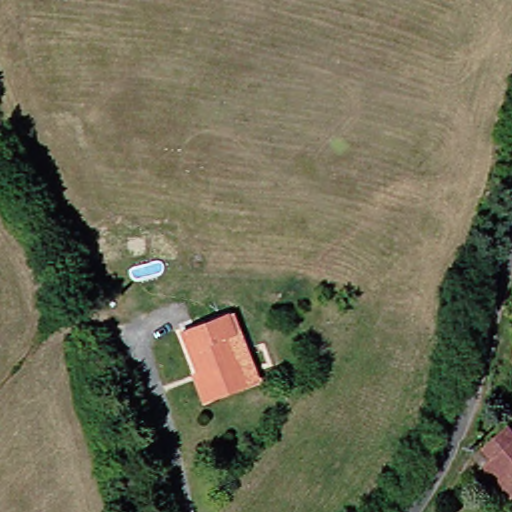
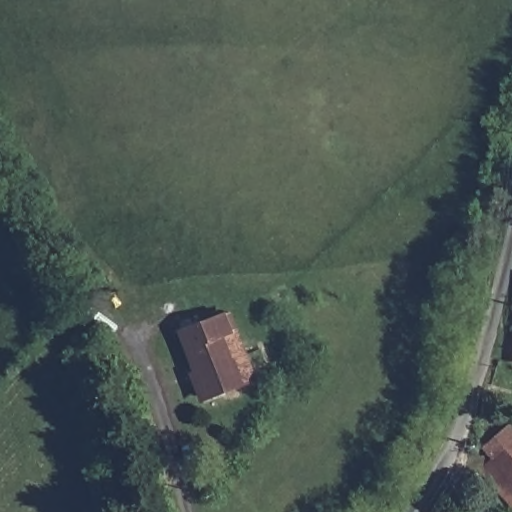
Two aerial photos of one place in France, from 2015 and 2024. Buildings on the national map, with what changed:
unchanged [(202,376),(207,374),(187,335),(230,315),(240,334),(235,337),(248,364),(257,360),(262,373),(255,377),(217,396),(212,399),(202,376)]
unchanged [(489,477),(502,464),(493,453),(512,435),(512,492),(508,496),(489,477)]

